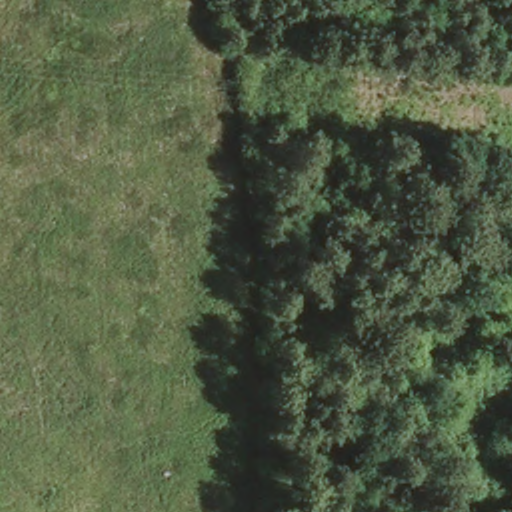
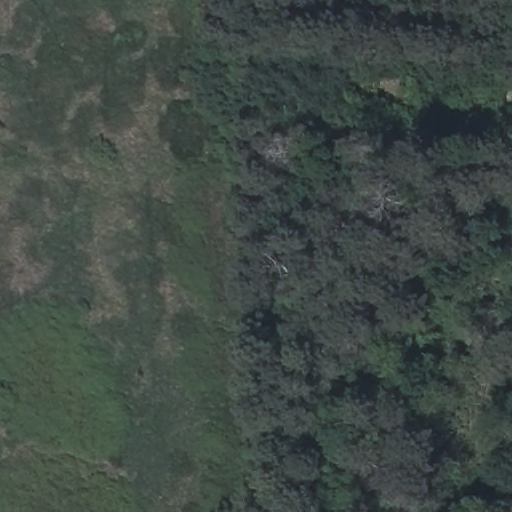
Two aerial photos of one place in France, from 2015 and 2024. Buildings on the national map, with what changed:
unchanged [(457,187),(455,165),(468,166),(471,187),(457,187)]

